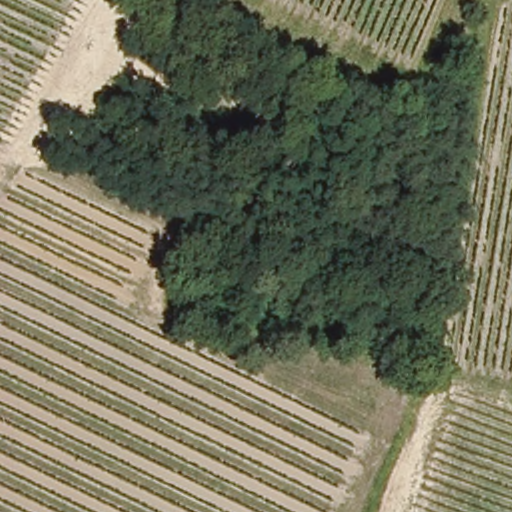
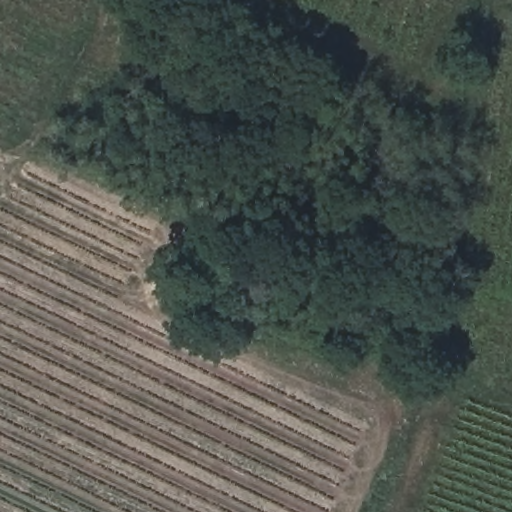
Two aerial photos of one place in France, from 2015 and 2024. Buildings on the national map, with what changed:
[]

